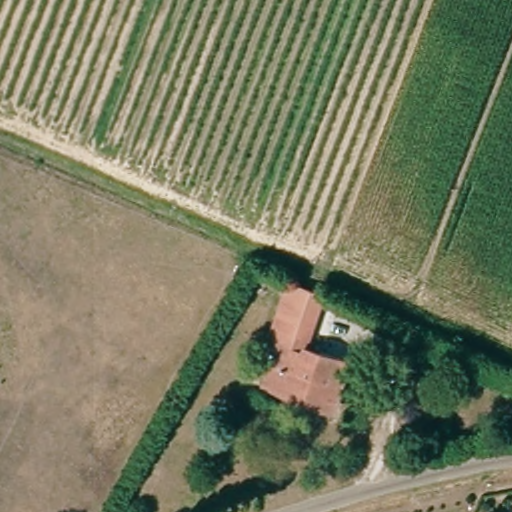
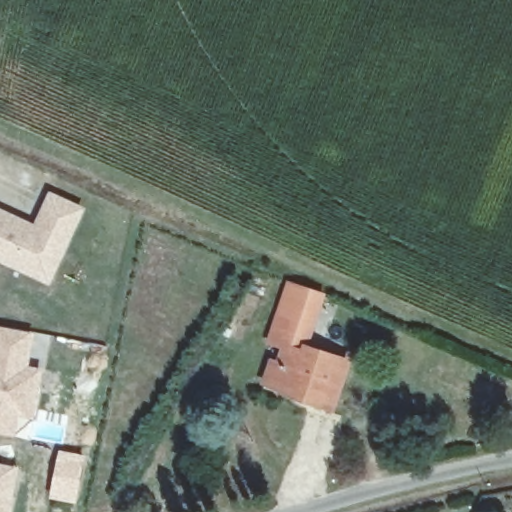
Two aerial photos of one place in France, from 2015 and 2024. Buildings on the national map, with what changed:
new [(50,191),(86,207),(51,285),(0,261),(0,208),(34,223),(50,191)]
unchanged [(344,362),(326,408),(306,401),(303,395),(270,378),(281,357),(287,361),(291,351),(276,345),(284,326),(297,296),(330,310),(313,348),(344,362)]
new [(30,366),(44,368),(35,420),(19,417),(16,437),(0,433),(0,326),(35,332),(30,366)]
new [(11,512),(0,512),(0,463),(20,467),(11,512)]

